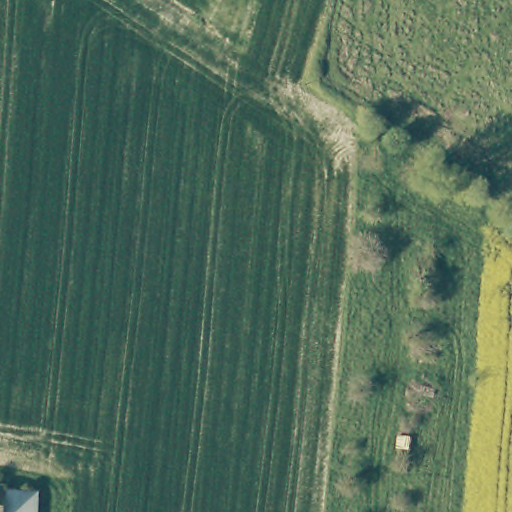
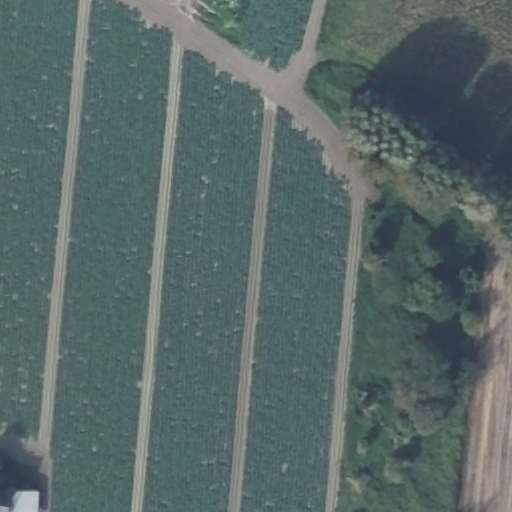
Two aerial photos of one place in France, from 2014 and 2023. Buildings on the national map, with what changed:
unchanged [(3,512),(0,512),(0,485),(5,486),(3,512)]

